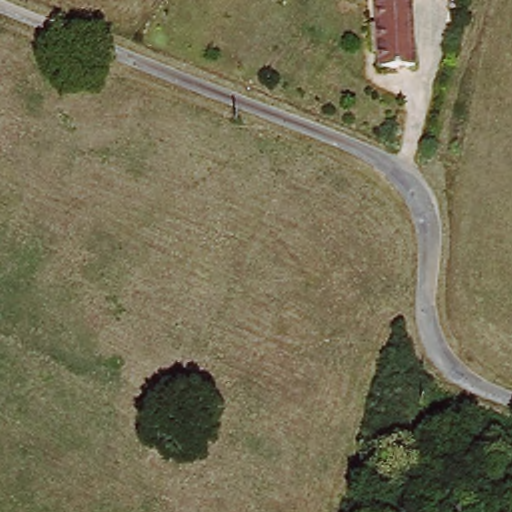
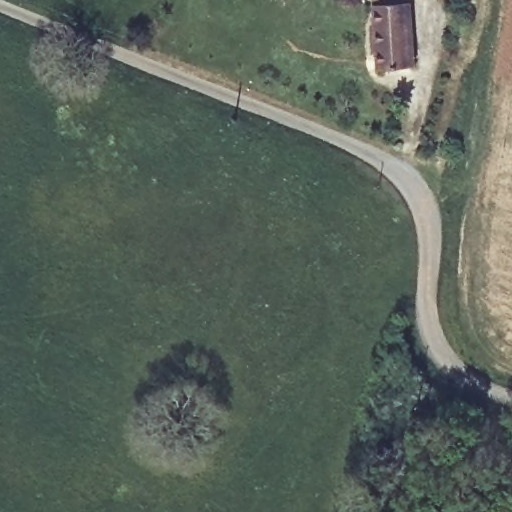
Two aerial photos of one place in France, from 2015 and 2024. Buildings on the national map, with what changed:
unchanged [(413,68),(378,71),(376,53),(370,54),(366,26),(374,25),(373,0),(409,0),(413,68)]

